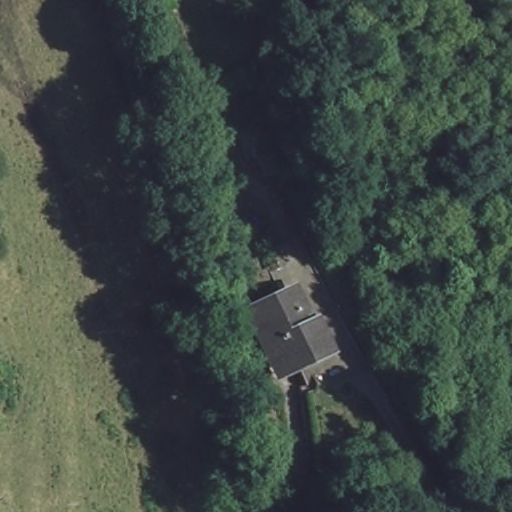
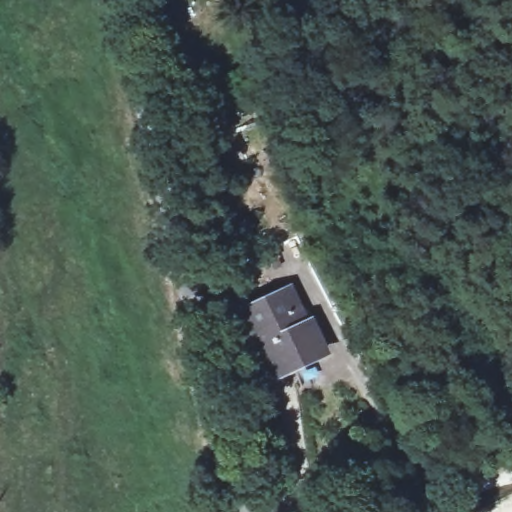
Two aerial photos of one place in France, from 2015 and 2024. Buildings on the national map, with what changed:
unchanged [(280,298),(292,294),(303,331),(313,328),(323,361),(297,370),(267,379),(247,308),(280,298)]

